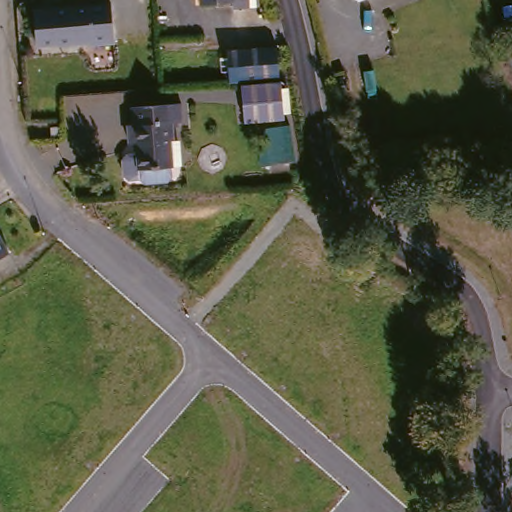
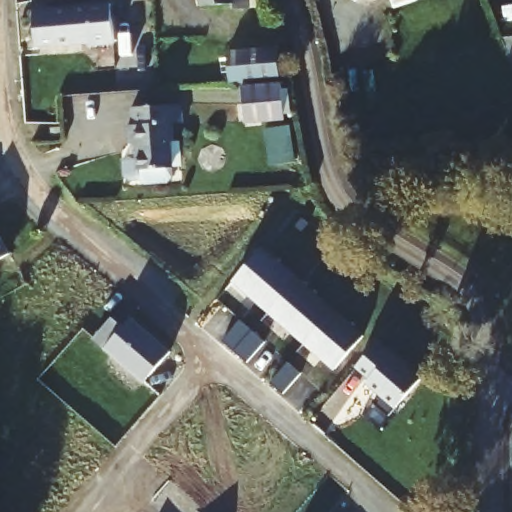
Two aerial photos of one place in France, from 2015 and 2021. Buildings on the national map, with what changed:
unchanged [(253,0),(254,7),(235,8),(234,1),(201,5),(201,0),(253,0)]
unchanged [(32,9),(111,4),(114,46),(51,49),(50,45),(34,46),(32,9)]
unchanged [(269,35),(271,58),(220,63),(219,39),(269,35)]
unchanged [(249,113),(246,78),(288,75),(289,109),(249,113)]
unchanged [(179,156),(179,166),(174,172),(153,174),(147,169),(136,170),(131,166),(129,151),(134,145),(144,145),(144,133),(133,134),(131,112),(139,111),(138,96),(185,91),(186,110),(176,111),(179,156)]
unchanged [(291,149),(266,150),(264,118),(289,116),(291,149)]
unchanged [(6,255),(0,258),(0,243),(6,255)]
new [(231,283),(261,248),(365,336),(332,372),(231,283)]
new [(109,318),(121,328),(129,318),(169,351),(144,383),(92,339),(109,318)]

